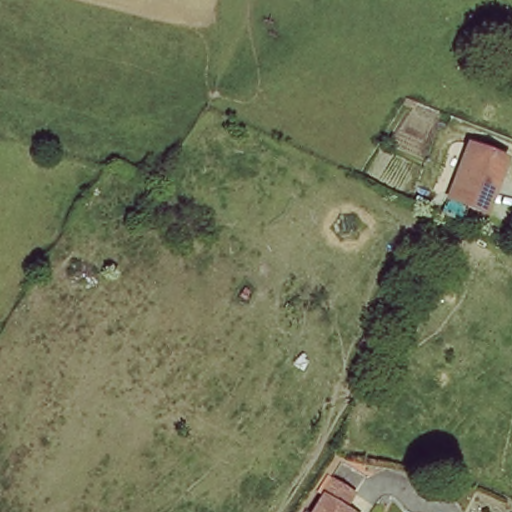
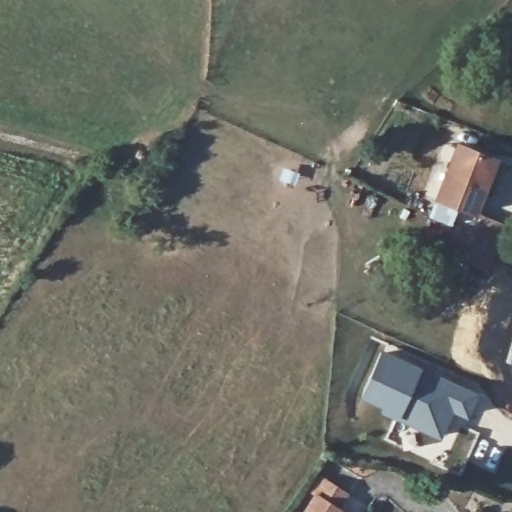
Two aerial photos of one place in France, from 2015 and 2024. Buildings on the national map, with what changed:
unchanged [(488,158),(485,166),(475,195),(469,212),(431,199),(450,145),(488,158)]
demolished [(512,176),(512,193),(507,207),(478,196),(489,167),(512,176)]
new [(400,420),(381,412),(383,408),(361,397),(383,350),(478,393),(467,417),(454,410),(440,439),(400,420)]
unchanged [(352,495),(343,507),(348,511),(348,512),(308,512),(333,480),(352,495)]

